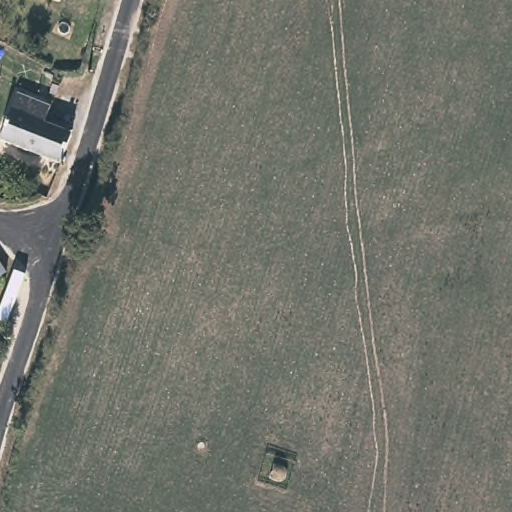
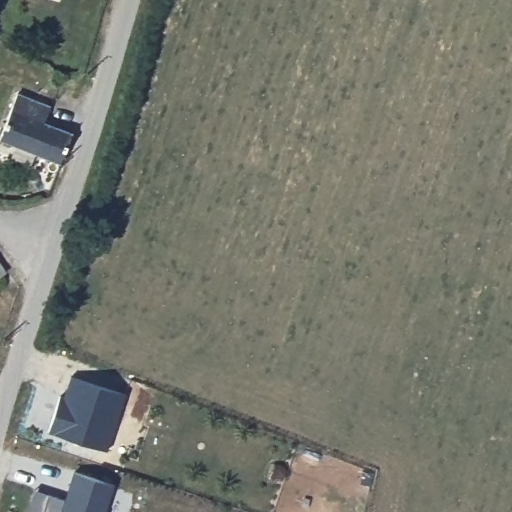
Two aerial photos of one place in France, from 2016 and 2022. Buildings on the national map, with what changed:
unchanged [(56,166),(20,153),(4,148),(0,146),(0,135),(9,113),(16,95),(49,108),(44,125),(64,133),(68,135),(56,166)]
unchanged [(0,274),(0,263),(5,270),(0,274)]
new [(49,433),(59,395),(64,396),(71,377),(125,394),(108,451),(49,433)]
unchanged [(284,469),(286,470),(288,471),(289,473),(289,477),(290,480),(289,482),(289,484),(287,485),(285,485),(283,485),(274,482),(280,466),(284,469)]
new [(35,489),(65,498),(74,472),(114,483),(105,512),(29,512),(35,489)]

